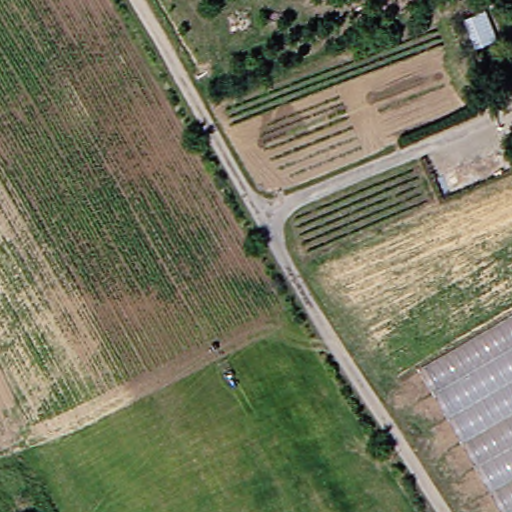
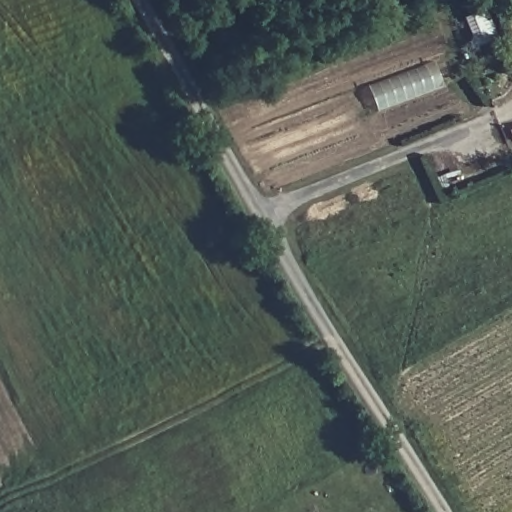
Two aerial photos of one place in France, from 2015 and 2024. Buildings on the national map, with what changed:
demolished [(503,512),(420,368),(512,315),(512,512),(503,512)]

